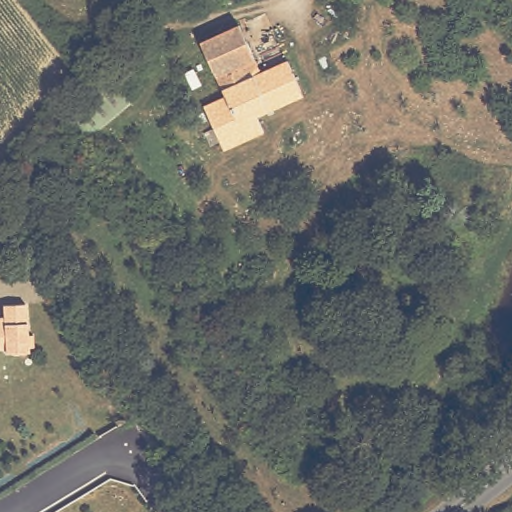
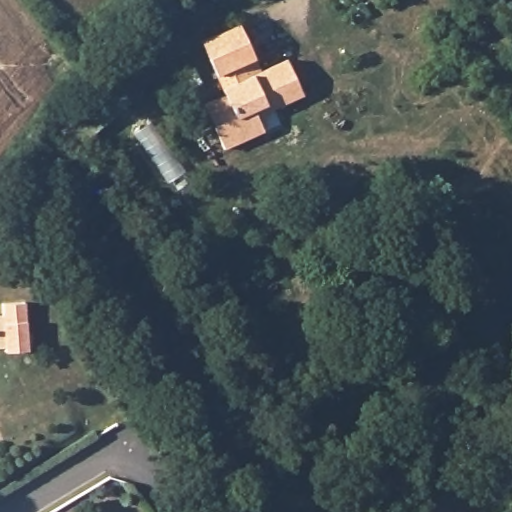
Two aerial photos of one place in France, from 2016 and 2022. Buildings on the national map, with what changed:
unchanged [(237,25),(253,58),(247,61),(253,74),(285,59),(301,93),(256,115),(263,132),(223,151),(202,108),(225,97),(199,43),(237,25)]
unchanged [(8,318),(7,306),(29,304),(32,352),(10,354),(10,349),(0,350),(0,319),(8,318)]

